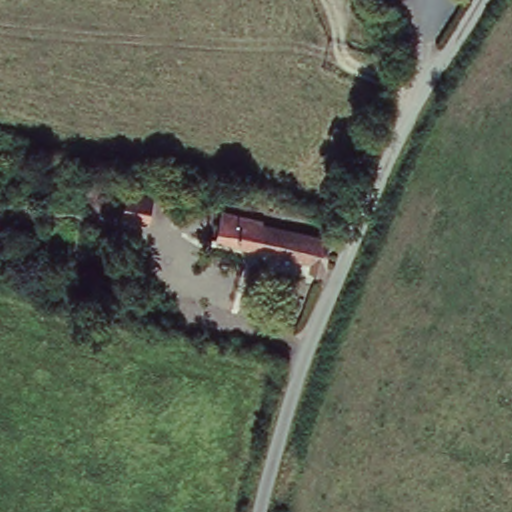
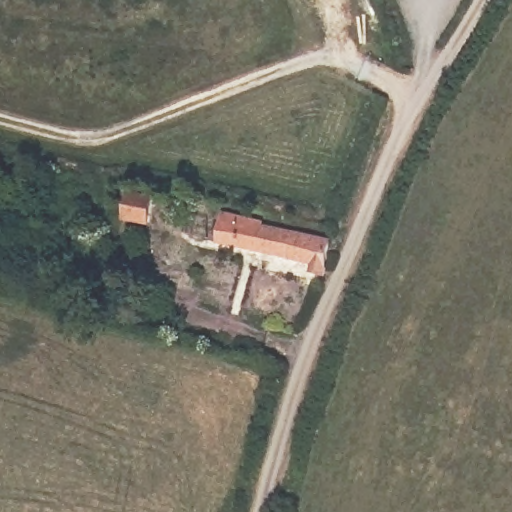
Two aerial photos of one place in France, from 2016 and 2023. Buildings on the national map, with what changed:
unchanged [(157,199),(149,224),(121,218),(128,192),(157,199)]
unchanged [(265,220),(264,229),(334,244),(326,278),(312,275),(312,264),(221,242),(227,214),(265,220)]

